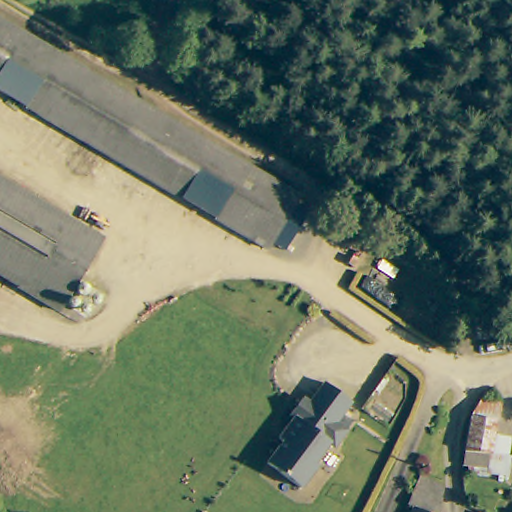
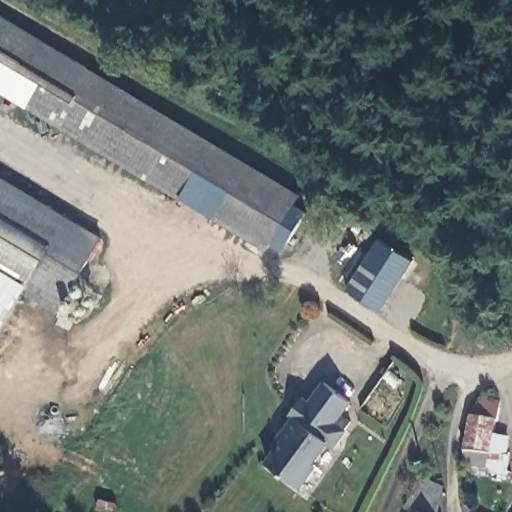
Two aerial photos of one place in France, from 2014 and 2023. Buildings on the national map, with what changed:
unchanged [(267,255),(0,90),(0,19),(299,204),(267,255)]
unchanged [(54,302),(0,269),(0,181),(94,238),(54,302)]
new [(380,310),(347,289),(378,239),(412,260),(380,310)]
unchanged [(342,414),(351,420),(346,428),(348,430),(332,451),(340,456),(328,471),(316,461),(315,463),(318,466),(301,488),(265,461),(282,439),(277,436),(291,417),(288,415),(302,395),(308,400),(322,380),(351,402),(342,414)]
unchanged [(462,466),(461,451),(468,412),(480,394),(501,399),(496,416),(493,431),(511,434),(506,452),(511,454),(505,473),(484,469),(462,466)]
unchanged [(413,501),(405,497),(418,470),(424,472),(445,480),(435,511),(436,512),(409,512),(413,501)]

